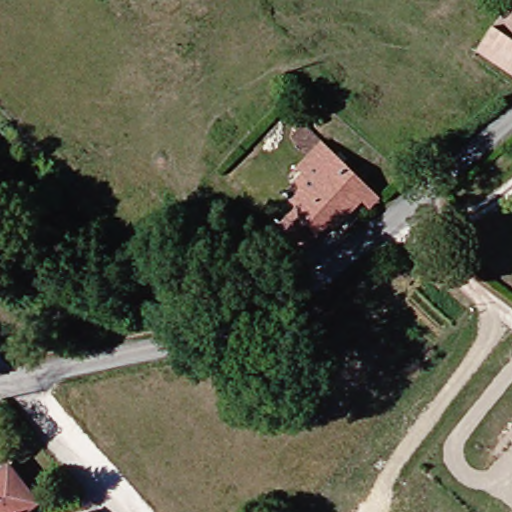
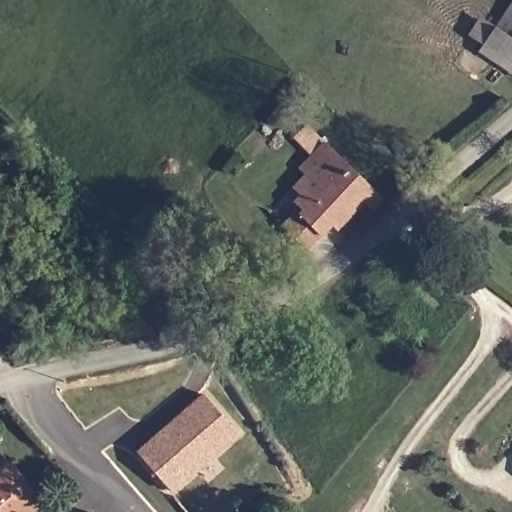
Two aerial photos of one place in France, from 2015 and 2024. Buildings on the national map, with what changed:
unchanged [(505,0),(512,0),(512,33),(492,20),(505,0)]
unchanged [(492,20),(512,33),(512,75),(475,49),(492,20)]
unchanged [(355,224),(344,238),(329,223),(307,244),(280,219),(296,205),(281,191),(315,155),(296,136),(308,128),(364,184),(368,182),(381,196),(370,206),(366,200),(347,217),(355,224)]
unchanged [(0,250),(0,229),(10,236),(0,250)]
new [(135,459),(203,395),(238,432),(170,496),(135,459)]
unchanged [(11,470),(40,505),(32,512),(0,512),(0,478),(11,470)]
unchanged [(91,512),(89,512),(90,511),(91,512)]

